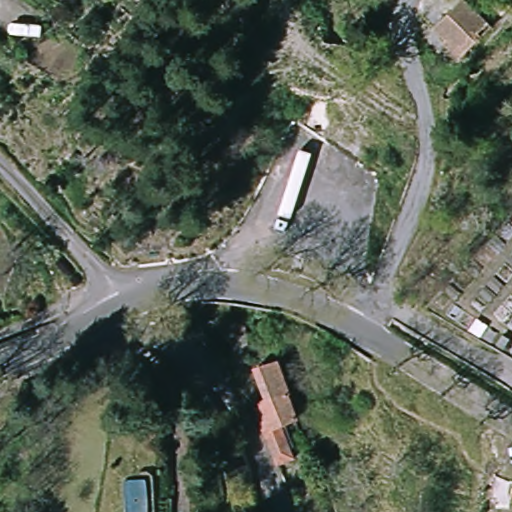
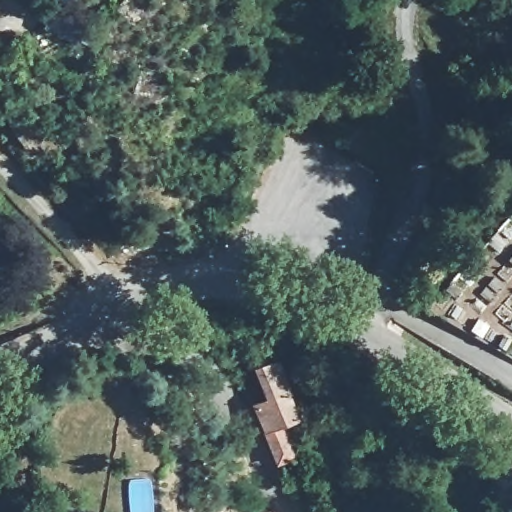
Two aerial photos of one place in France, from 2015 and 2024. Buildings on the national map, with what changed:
unchanged [(463,3),(488,33),(455,59),(430,29),(463,3)]
unchanged [(246,342),(249,362),(250,368),(234,370),(231,345),(230,344),(232,343),(246,340),(246,342)]
unchanged [(295,459),(278,467),(275,464),(254,412),(266,407),(254,374),(269,369),(277,366),(280,373),(292,402),(288,404),(296,423),(283,429),(295,459)]

